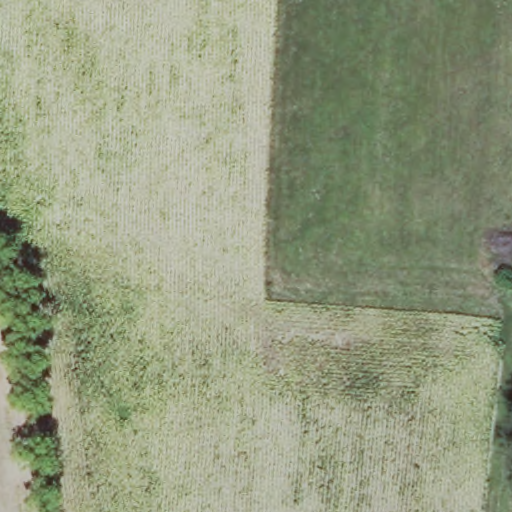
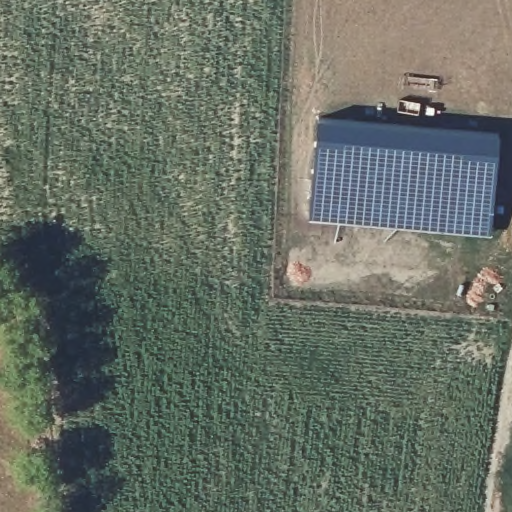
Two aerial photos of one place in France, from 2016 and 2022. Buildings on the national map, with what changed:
new [(498,133),(490,233),(310,220),(318,120),(498,133)]

